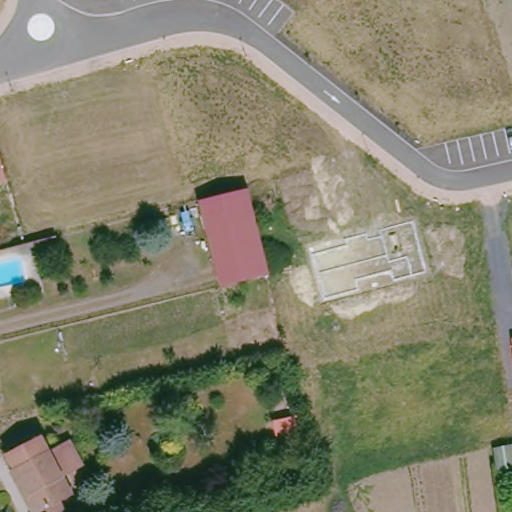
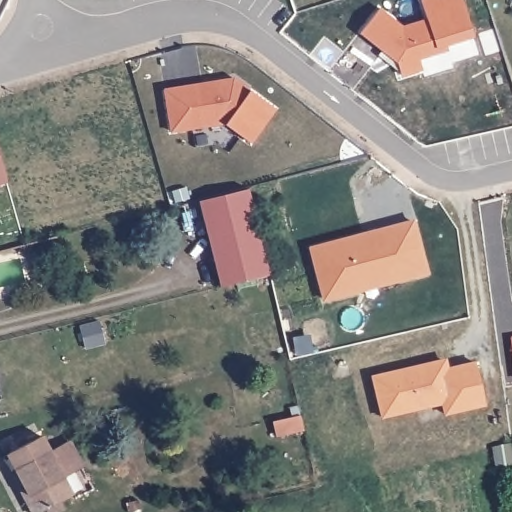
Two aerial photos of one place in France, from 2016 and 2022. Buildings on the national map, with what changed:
new [(379,9),(403,26),(428,20),(423,0),(461,0),(473,36),(447,45),(449,50),(420,59),(423,71),(403,76),(397,61),(360,34),(379,9)]
new [(248,90),(275,109),(252,144),(226,124),(171,133),(164,89),(234,78),(248,90)]
unchanged [(0,186),(0,157),(7,184),(0,186)]
unchanged [(221,283),(198,197),(247,185),(269,272),(221,283)]
new [(414,219),(428,274),(323,302),(309,248),(414,219)]
new [(384,416),(376,376),(445,361),(448,370),(478,364),(487,407),(447,415),(444,403),(384,416)]
unchanged [(279,436),(276,421),(300,415),(304,430),(279,436)]
unchanged [(35,512),(25,492),(30,489),(13,449),(46,434),(73,496),(35,512)]

